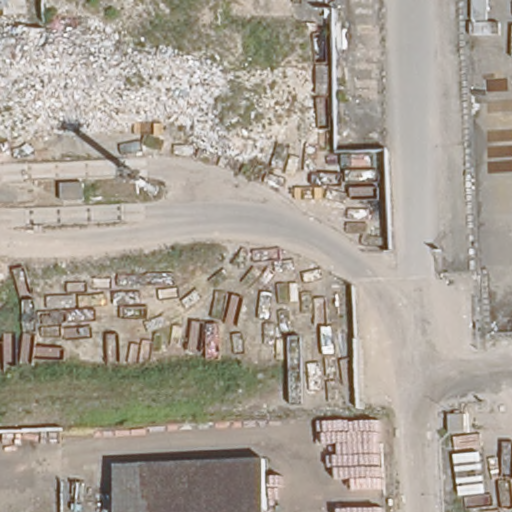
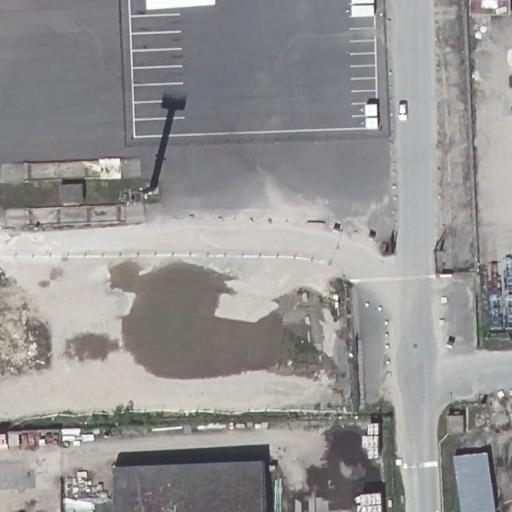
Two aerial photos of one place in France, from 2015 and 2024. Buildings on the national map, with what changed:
demolished [(511,433),(494,434),(493,414),(509,414),(511,433)]
unchanged [(469,436),(452,437),(451,418),(468,417),(469,436)]
new [(455,458),(488,453),(497,512),(463,512),(455,458)]
unchanged [(267,464),(267,512),(113,512),(111,469),(267,464)]

